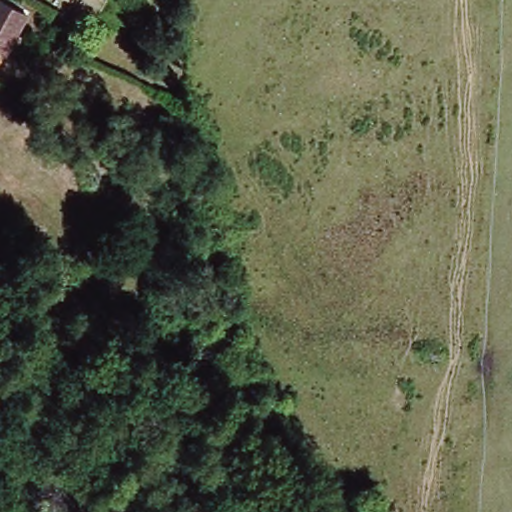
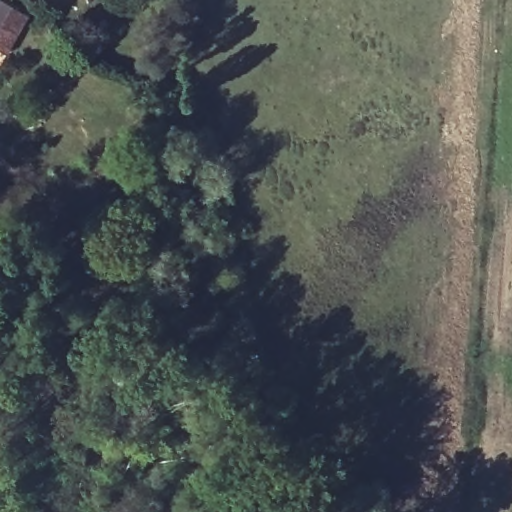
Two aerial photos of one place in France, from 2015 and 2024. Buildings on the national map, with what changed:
unchanged [(0,1),(22,14),(0,50),(0,1)]

